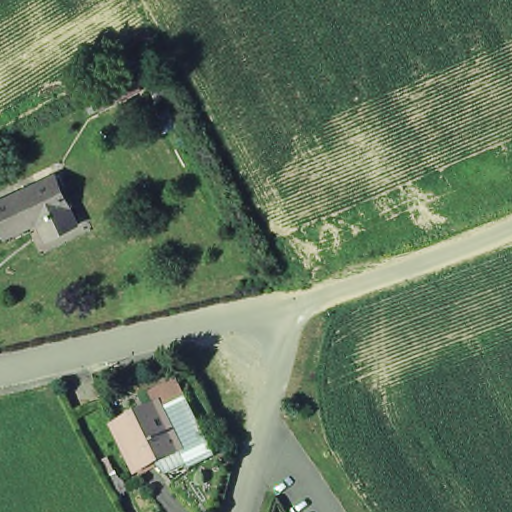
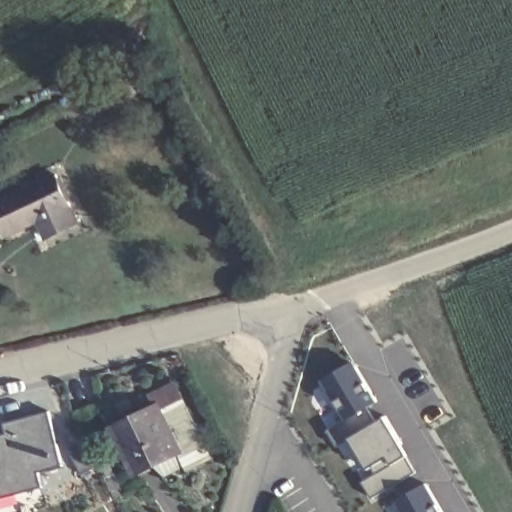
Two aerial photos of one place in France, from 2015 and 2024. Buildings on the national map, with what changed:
unchanged [(0,224),(0,200),(56,173),(72,200),(67,204),(77,223),(60,234),(47,241),(36,220),(5,236),(0,224)]
new [(370,396),(337,416),(312,381),(346,361),(370,396)]
unchanged [(192,465),(184,448),(161,403),(157,393),(180,381),(216,453),(192,465)]
unchanged [(140,469),(117,425),(161,403),(184,448),(140,469)]
new [(4,420),(47,411),(60,466),(35,469),(39,486),(0,496),(0,435),(9,433),(4,420)]
new [(380,411),(442,512),(391,512),(340,433),(380,411)]

